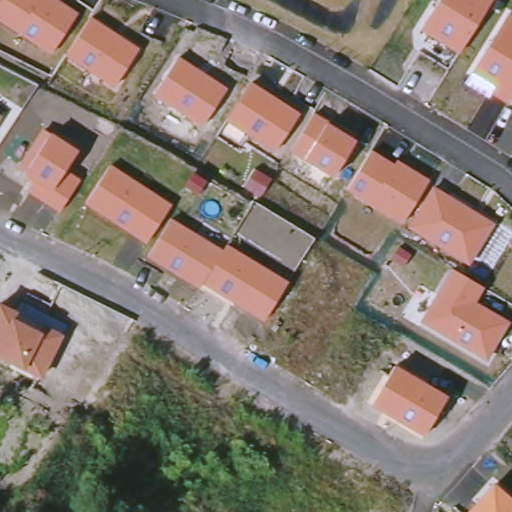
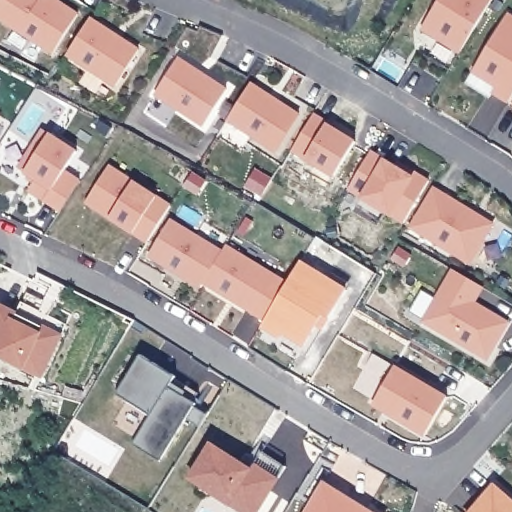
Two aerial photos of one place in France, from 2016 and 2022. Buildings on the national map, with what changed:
unchanged [(48,54),(0,21),(0,0),(59,0),(78,13),(48,54)]
unchanged [(419,31),(439,0),(492,0),(458,54),(419,31)]
unchanged [(512,93),(504,105),(491,96),(490,101),(465,85),(510,13),(512,14),(512,93)]
unchanged [(138,51),(114,91),(66,58),(91,18),(138,51)]
unchanged [(227,89),(200,128),(155,96),(182,58),(227,89)]
unchanged [(300,114),(275,152),(249,135),(243,143),(221,131),(227,120),(252,83),(300,114)]
unchanged [(333,125),(331,127),(355,140),(331,176),(291,149),(315,113),(333,125)]
unchanged [(2,116),(0,119),(0,115),(2,116)]
unchanged [(77,149),(67,169),(81,177),(61,211),(30,192),(34,182),(14,170),(41,129),(77,149)]
unchanged [(395,163),(398,159),(429,177),(403,222),(346,188),(370,151),(395,163)]
unchanged [(170,204),(145,243),(85,205),(110,166),(170,204)]
unchanged [(493,222),(470,264),(410,229),(433,186),(493,222)]
unchanged [(317,236),(297,269),(238,234),(260,201),(317,236)]
unchanged [(224,249),(227,244),(287,282),(262,321),(202,282),(198,289),(146,256),(171,219),(224,249)]
new [(287,282),(299,262),(343,289),(325,319),(318,316),(302,345),(284,334),(276,336),(260,326),(262,321),(287,282)]
unchanged [(484,287),(475,303),(509,322),(488,359),(422,322),(450,268),(484,287)]
unchanged [(63,332),(40,379),(0,360),(0,303),(63,332)]
new [(141,355),(176,377),(170,387),(196,404),(160,462),(132,445),(150,416),(127,402),(116,395),(141,355)]
unchanged [(447,398),(425,438),(370,407),(395,365),(447,398)]
new [(230,505),(190,479),(212,445),(251,470),(255,465),(262,452),(286,467),(278,480),(260,508),(257,512),(242,512),(230,505)]
unchanged [(512,512),(464,512),(491,482),(512,499),(512,512)]
new [(325,484),(337,492),(370,512),(308,512),(310,509),(325,484)]

